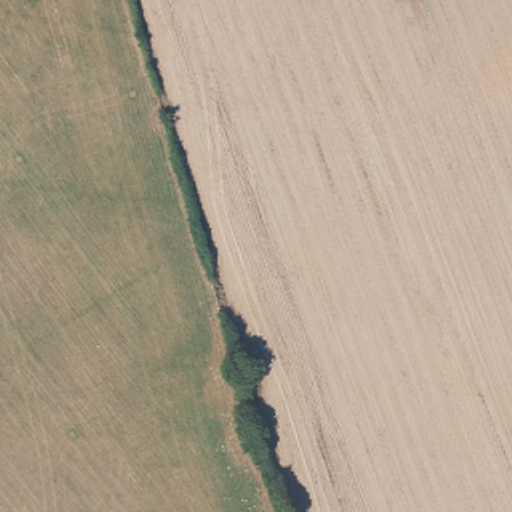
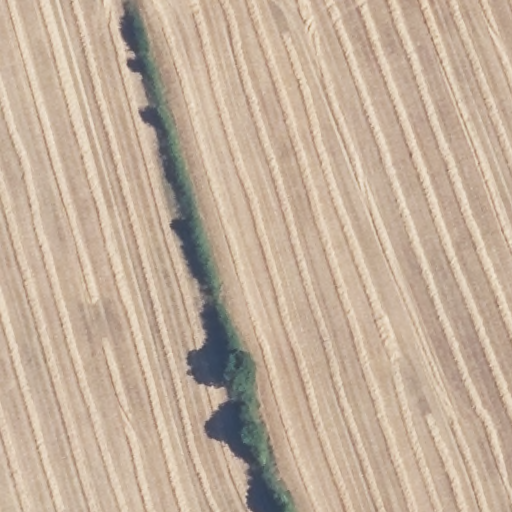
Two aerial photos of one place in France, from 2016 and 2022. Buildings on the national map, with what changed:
[]

